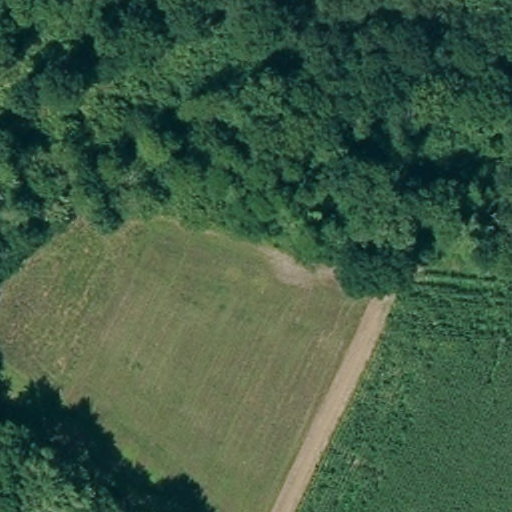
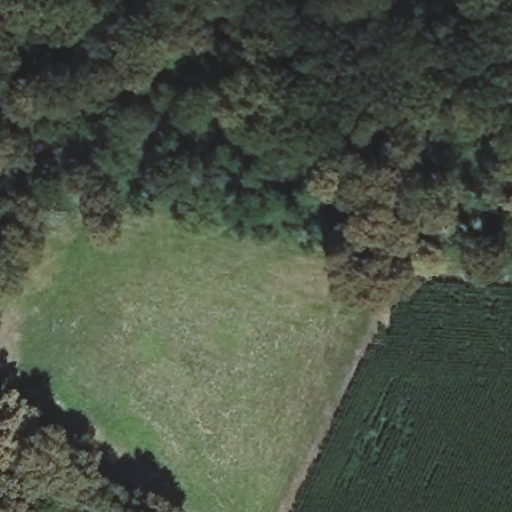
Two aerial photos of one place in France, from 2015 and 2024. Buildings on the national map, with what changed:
[]

